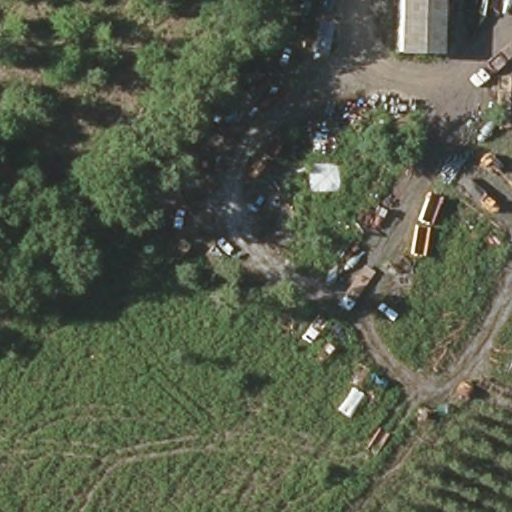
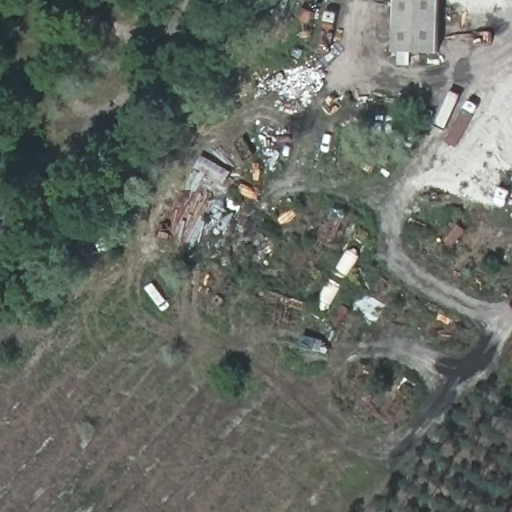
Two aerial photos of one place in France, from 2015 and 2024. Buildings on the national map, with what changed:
unchanged [(439,59),(393,57),(395,0),(440,0),(439,59)]

